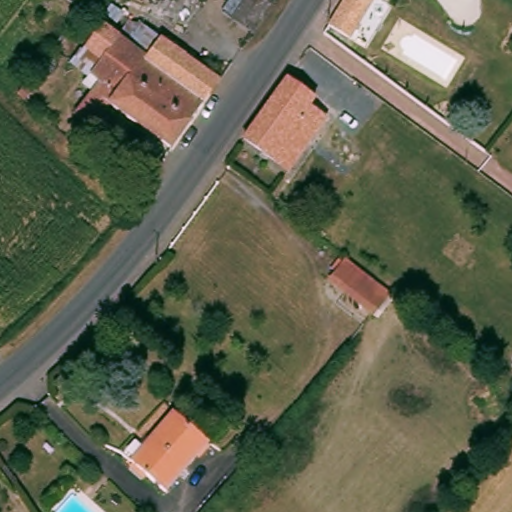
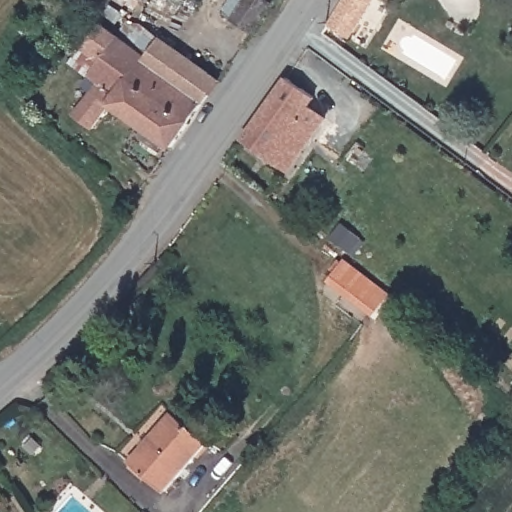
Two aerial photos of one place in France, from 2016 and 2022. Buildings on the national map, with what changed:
unchanged [(253,0),(242,16),(226,6),(230,0),(253,0)]
unchanged [(331,23),(343,0),(378,0),(352,37),(331,23)]
unchanged [(98,131),(79,118),(105,84),(93,74),(103,59),(66,32),(86,6),(130,39),(142,23),(223,80),(172,151),(112,111),(98,131)]
unchanged [(22,77),(14,88),(4,79),(12,68),(22,77)]
unchanged [(319,96),(317,105),(329,114),(291,171),(249,137),(292,78),(319,96)]
unchanged [(378,287),(370,300),(347,284),(357,272),(378,287)]
unchanged [(173,492),(132,456),(176,405),(218,442),(173,492)]

